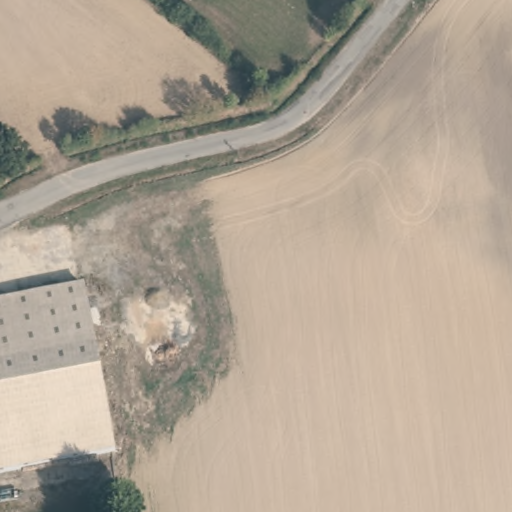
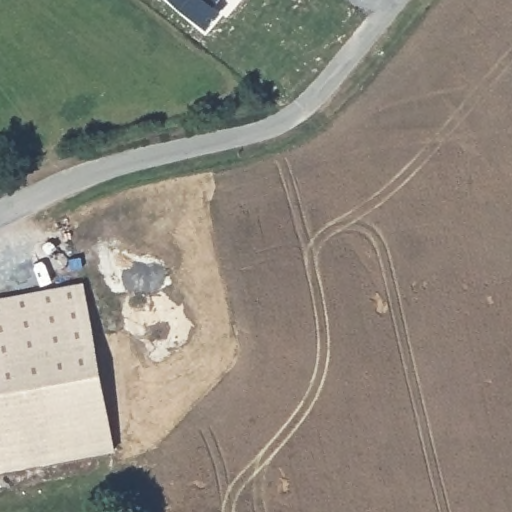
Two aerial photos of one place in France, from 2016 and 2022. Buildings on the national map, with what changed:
new [(214,7),(220,12),(206,32),(168,0),(219,0),(214,7)]
unchanged [(0,471),(0,300),(86,285),(119,451),(0,471)]

